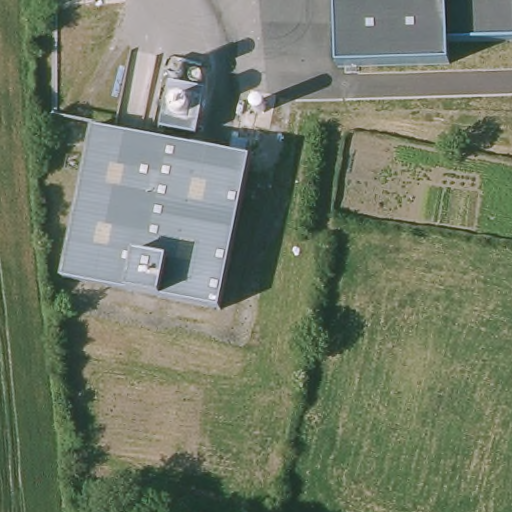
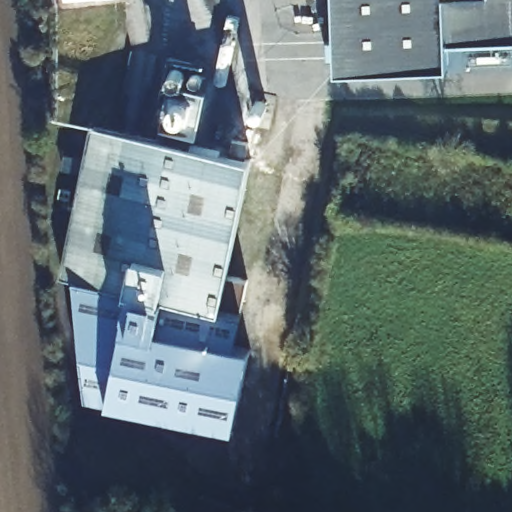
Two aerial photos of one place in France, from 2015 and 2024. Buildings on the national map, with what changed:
unchanged [(449,64),(338,67),(336,0),(512,0),(512,40),(449,43),(449,64)]
new [(449,43),(512,40),(512,67),(450,71),(449,64),(449,43)]
unchanged [(168,84),(206,91),(197,138),(160,129),(168,84)]
unchanged [(92,126),(250,160),(220,308),(162,296),(127,289),(62,277),(92,126)]
new [(127,289),(162,296),(220,308),(227,277),(247,280),(241,315),(236,346),(251,348),(236,429),(107,403),(87,400),(72,279),(127,289)]

